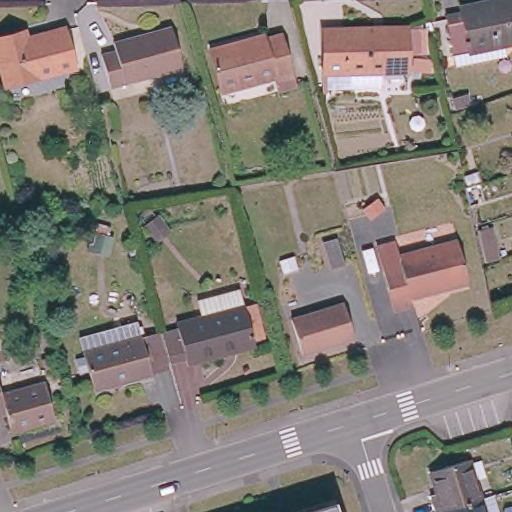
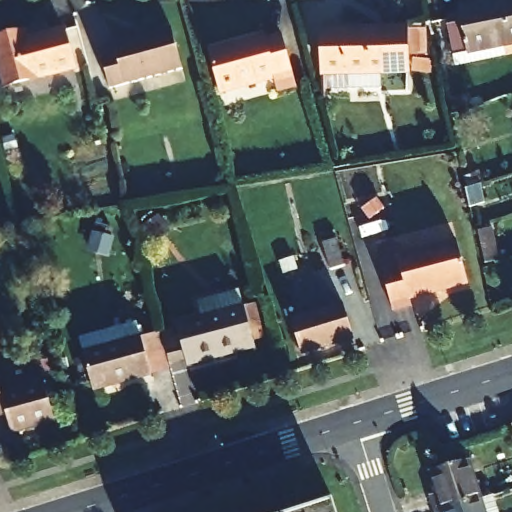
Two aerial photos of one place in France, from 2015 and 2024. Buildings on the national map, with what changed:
unchanged [(455,54),(447,15),(461,12),(460,5),(485,0),(512,0),(512,42),(507,43),(510,56),(457,66),(455,54)]
unchanged [(112,50),(110,40),(170,24),(181,69),(109,87),(100,53),(112,50)]
unchanged [(16,36),(17,41),(59,30),(70,69),(5,86),(0,70),(0,40),(16,36)]
unchanged [(405,31),(405,77),(325,79),(325,35),(405,31)]
unchanged [(264,36),(264,39),(279,35),(288,73),(220,90),(210,49),(264,36)]
unchanged [(473,177),(477,196),(463,199),(459,182),(473,177)]
unchanged [(483,219),(492,259),(477,264),(469,223),(483,219)]
unchanged [(330,235),(337,259),(320,263),(314,239),(330,235)]
unchanged [(394,241),(399,259),(455,242),(467,281),(410,298),(412,305),(395,311),(378,246),(394,241)]
unchanged [(254,284),(267,334),(248,340),(232,291),(254,284)]
unchanged [(197,319),(192,303),(232,291),(248,340),(250,344),(183,365),(182,361),(162,367),(154,333),(171,327),(197,319)]
unchanged [(343,309),(354,343),(303,358),(292,324),(343,309)]
unchanged [(137,328),(152,382),(94,399),(78,345),(137,328)]
unchanged [(2,395),(45,384),(56,424),(13,436),(7,416),(0,418),(0,386),(2,395)]
unchanged [(432,507),(440,505),(432,481),(471,469),(483,508),(470,512),(433,512),(432,507)]
unchanged [(334,512),(292,512),(330,500),(334,512)]
unchanged [(483,508),(484,512),(470,512),(483,508)]

